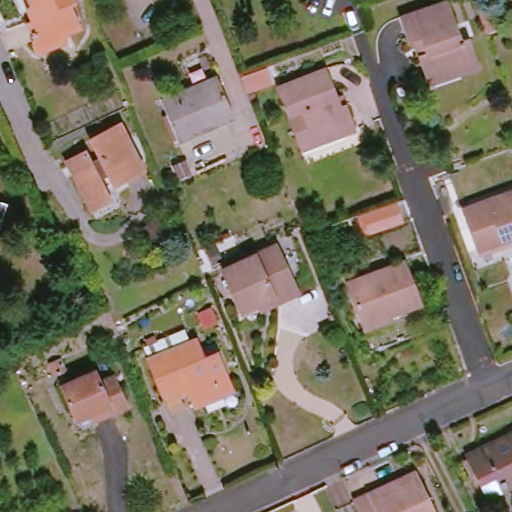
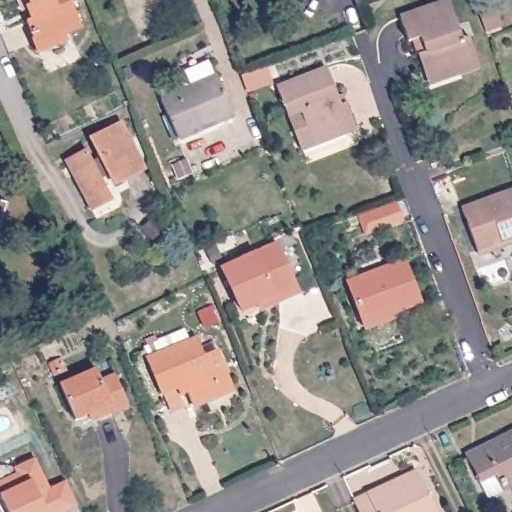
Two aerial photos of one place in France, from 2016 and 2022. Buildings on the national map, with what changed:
unchanged [(83,19),(67,26),(70,34),(43,45),(31,18),(40,14),(34,0),(79,0),(76,1),(83,19)]
unchanged [(429,78),(422,55),(429,54),(424,39),(413,43),(404,18),(453,1),(466,41),(473,39),(483,69),(464,75),(432,85),(429,78)]
unchanged [(296,141),(277,89),(327,70),(341,106),(345,104),(355,130),(322,143),(300,150),(296,141)]
unchanged [(217,76),(234,116),(178,140),(161,101),(217,76)]
unchanged [(116,173),(100,180),(110,200),(91,209),(68,163),(86,153),(91,163),(100,158),(91,140),(120,126),(143,170),(120,181),(116,173)]
unchanged [(467,210),(512,193),(512,245),(484,255),(482,251),(467,210)]
unchanged [(12,204),(1,239),(0,238),(0,201),(12,204)]
unchanged [(261,310),(259,304),(241,312),(223,270),(276,246),(295,288),(298,294),(261,310)]
unchanged [(364,325),(348,284),(404,262),(421,304),(364,325)]
unchanged [(168,359),(201,344),(210,365),(223,359),(233,383),(222,387),(226,398),(197,410),(189,391),(166,401),(151,366),(153,364),(149,353),(163,348),(168,359)]
unchanged [(120,374),(134,406),(101,421),(98,414),(80,421),(64,385),(101,369),(106,381),(120,374)]
unchanged [(512,481),(504,485),(497,469),(481,478),(468,452),(512,429),(512,481)]
new [(20,474),(17,467),(33,459),(48,492),(66,483),(80,512),(6,512),(0,499),(0,484),(20,474)]
unchanged [(354,503),(417,473),(435,512),(358,512),(354,503)]

